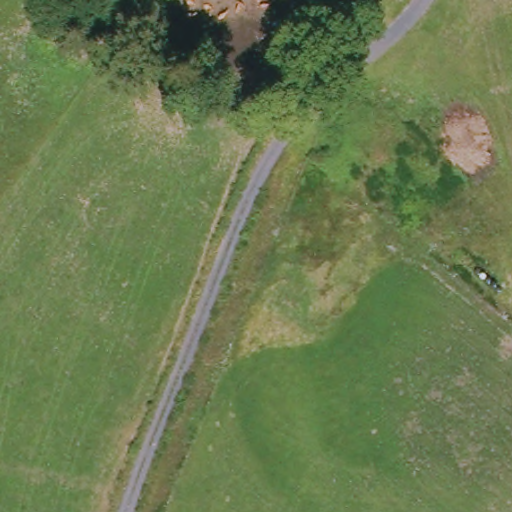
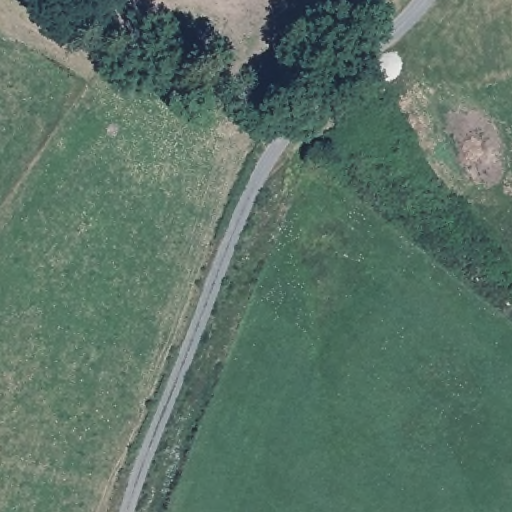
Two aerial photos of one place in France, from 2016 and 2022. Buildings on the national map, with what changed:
[]

